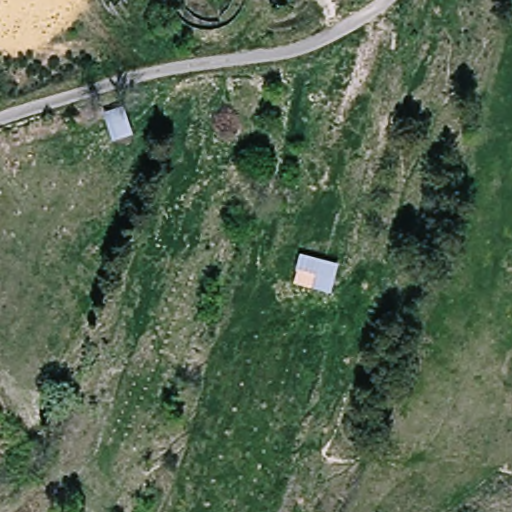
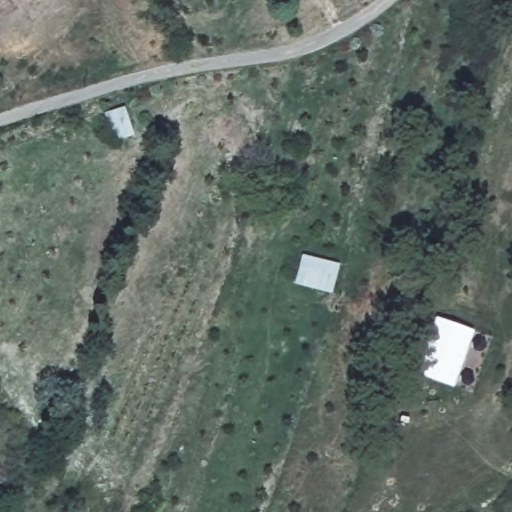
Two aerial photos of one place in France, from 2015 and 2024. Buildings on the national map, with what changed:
unchanged [(332,297),(295,287),(303,255),(341,266),(332,297)]
new [(455,386),(418,372),(438,317),(475,331),(455,386)]

